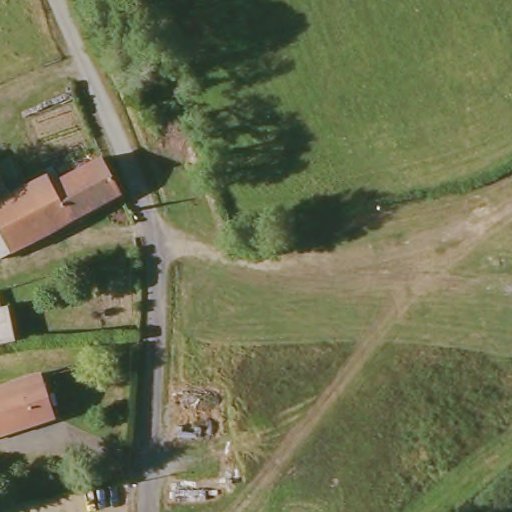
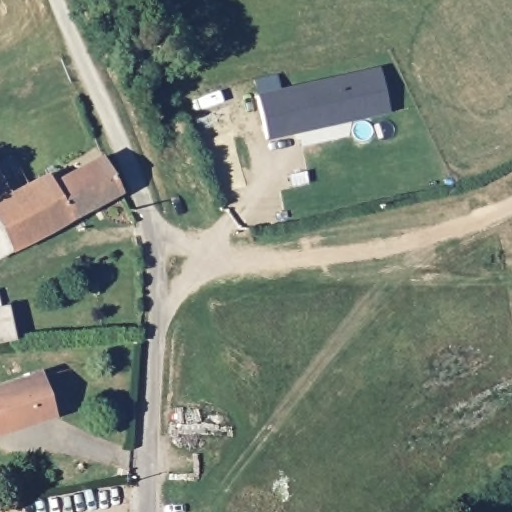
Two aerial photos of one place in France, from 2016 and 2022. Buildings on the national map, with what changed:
new [(268,139),(257,94),(378,66),(389,111),(268,139)]
new [(197,118),(191,98),(234,86),(240,107),(197,118)]
unchanged [(0,207),(0,156),(2,155),(21,198),(0,207)]
unchanged [(106,175),(123,213),(70,235),(53,197),(106,175)]
unchanged [(48,187),(53,197),(70,235),(41,246),(21,198),(48,187)]
unchanged [(41,246),(0,263),(0,207),(21,198),(41,246)]
unchanged [(15,338),(0,338),(0,305),(14,304),(14,317),(15,338)]
unchanged [(33,379),(44,427),(0,439),(0,389),(33,379)]

